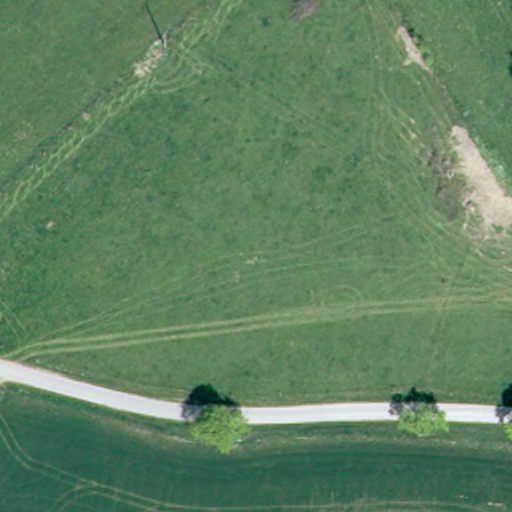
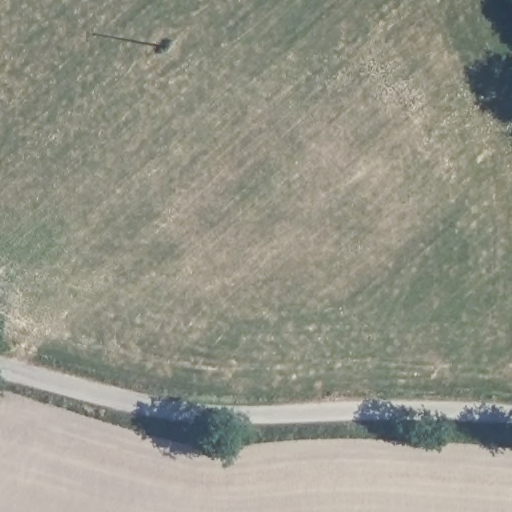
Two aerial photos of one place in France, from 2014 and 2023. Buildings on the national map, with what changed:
[]

